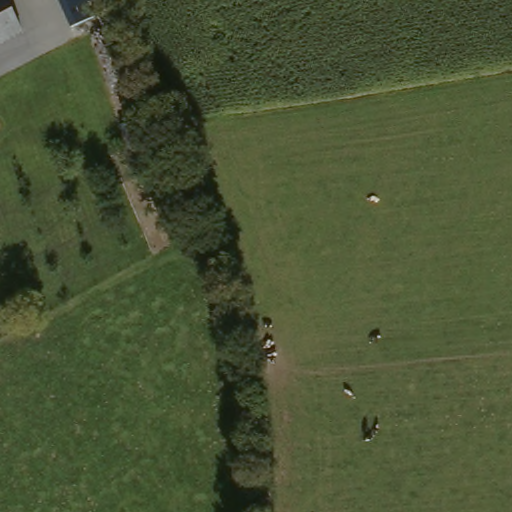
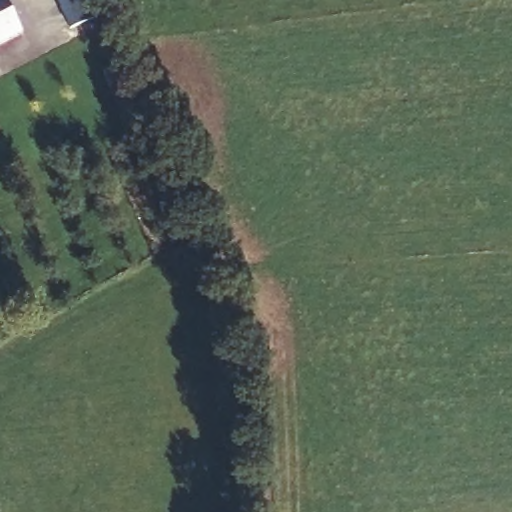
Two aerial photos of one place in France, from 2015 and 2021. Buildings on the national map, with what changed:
unchanged [(2,0),(18,35),(19,37),(0,46),(0,0),(2,0)]

